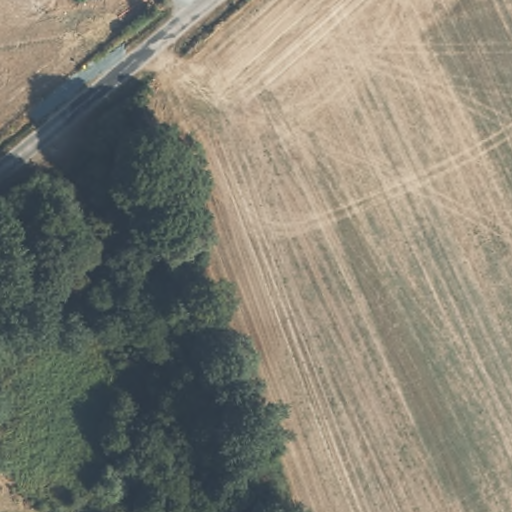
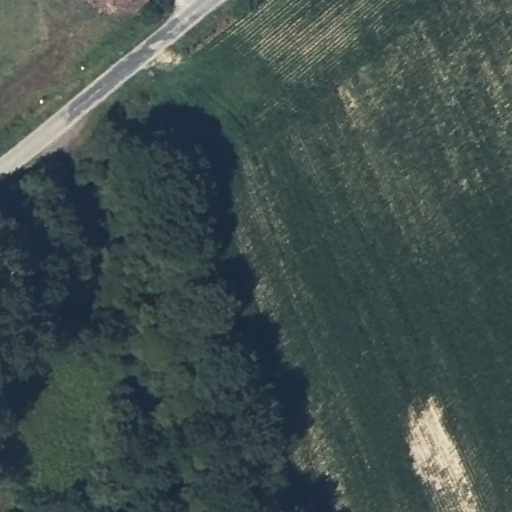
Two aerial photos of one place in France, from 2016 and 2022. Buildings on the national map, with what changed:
[]

